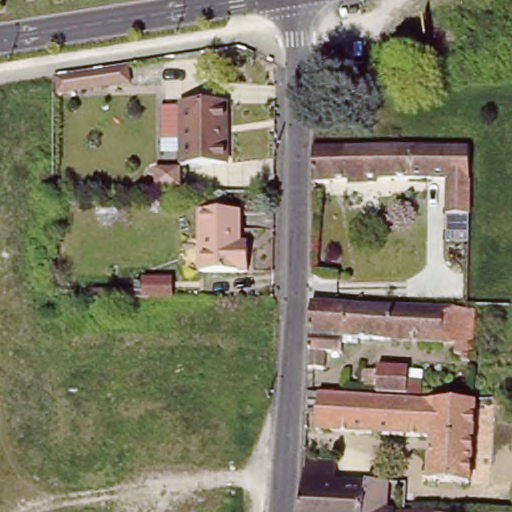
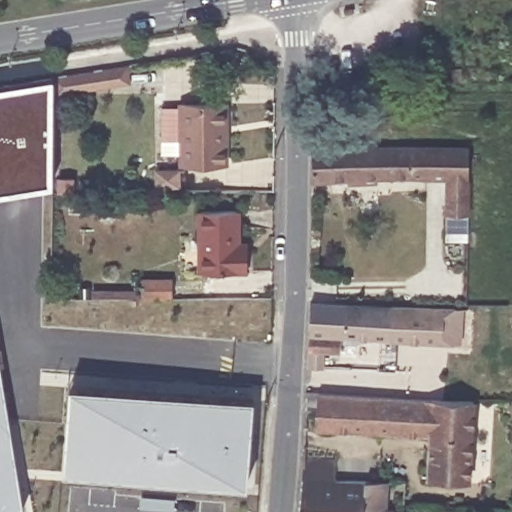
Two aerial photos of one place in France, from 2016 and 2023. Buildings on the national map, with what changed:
demolished [(160,60),(163,83),(112,87),(110,65),(160,60)]
new [(58,77),(130,64),(133,82),(62,95),(58,77)]
new [(0,190),(0,90),(48,82),(49,182),(0,190)]
unchanged [(180,169),(179,108),(218,107),(225,107),(225,149),(225,169),(180,169)]
unchanged [(313,152),(427,151),(472,150),(471,245),(448,244),(450,182),(350,177),(313,186),(313,152)]
new [(183,171),(183,191),(157,191),(156,171),(183,171)]
unchanged [(247,255),(247,277),(198,277),(197,217),(237,216),(237,247),(247,247),(247,255)]
unchanged [(172,298),(90,298),(91,291),(133,291),(133,282),(141,282),(141,278),(172,279),(172,298)]
unchanged [(422,306),(468,307),(476,308),(473,353),(470,353),(470,359),(462,358),(463,353),(456,352),(457,342),(385,337),(358,337),(358,345),(342,343),(342,351),(326,350),(325,367),(310,366),(312,302),(422,306)]
unchanged [(380,366),(408,367),(408,392),(379,390),(380,366)]
new [(0,374),(22,511),(0,510),(0,374)]
new [(70,386),(255,399),(246,486),(63,470),(70,386)]
unchanged [(450,400),(468,401),(474,406),(472,482),(432,482),(432,454),(432,435),(306,428),(308,391),(450,400)]
unchanged [(304,472),(305,463),(335,463),(337,483),(389,485),(388,512),(301,512),(304,472)]

